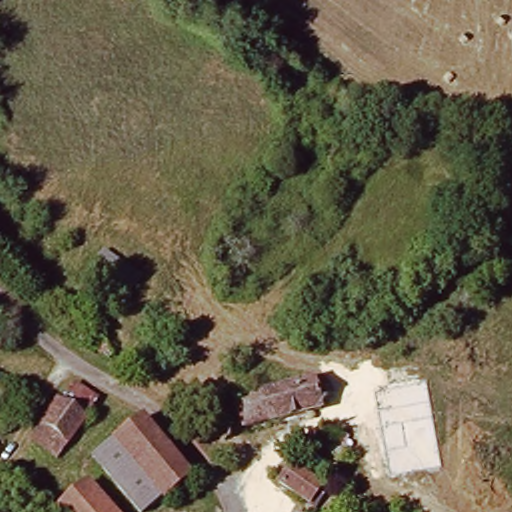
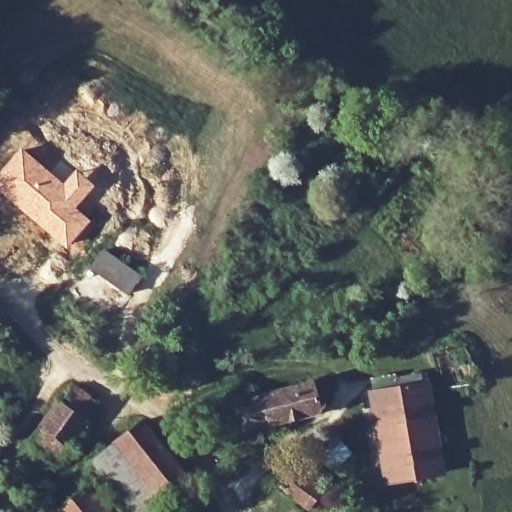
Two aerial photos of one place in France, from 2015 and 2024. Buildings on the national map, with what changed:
new [(61,182),(75,168),(94,186),(75,207),(90,221),(65,248),(0,193),(0,169),(20,147),(61,182)]
unchanged [(141,280),(101,263),(111,244),(150,263),(141,280)]
unchanged [(180,297),(166,324),(153,317),(167,290),(180,297)]
new [(445,473),(383,485),(366,391),(429,379),(445,473)]
unchanged [(260,397),(310,383),(321,409),(316,412),(268,425),(245,431),(236,404),(260,397)]
unchanged [(81,386),(104,406),(87,424),(56,464),(29,444),(61,403),(65,405),(81,386)]
unchanged [(142,434),(180,488),(145,512),(139,512),(104,460),(142,434)]
unchanged [(333,483),(320,501),(295,483),(309,465),(333,483)]
unchanged [(111,512),(70,512),(99,493),(111,512)]

